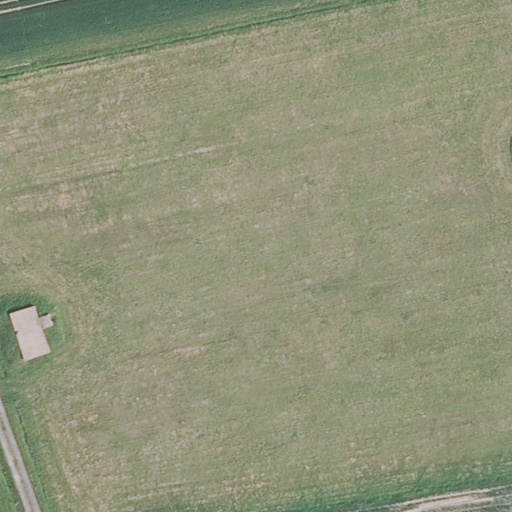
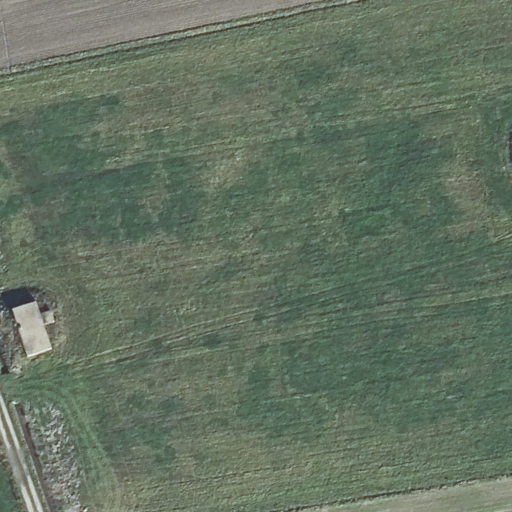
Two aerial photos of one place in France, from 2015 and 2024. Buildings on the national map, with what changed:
unchanged [(36,306),(40,317),(51,315),(55,328),(46,331),(53,356),(29,362),(12,313),(36,306)]

